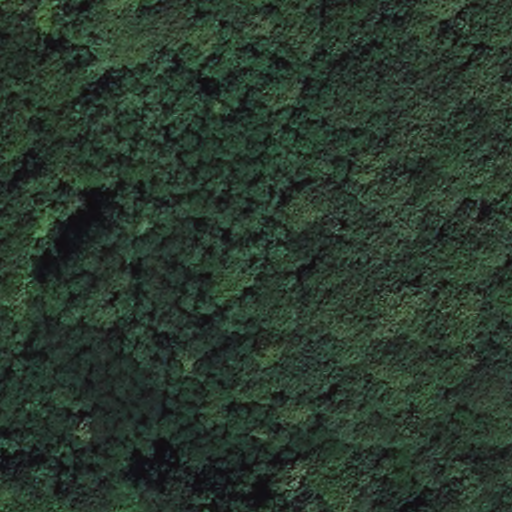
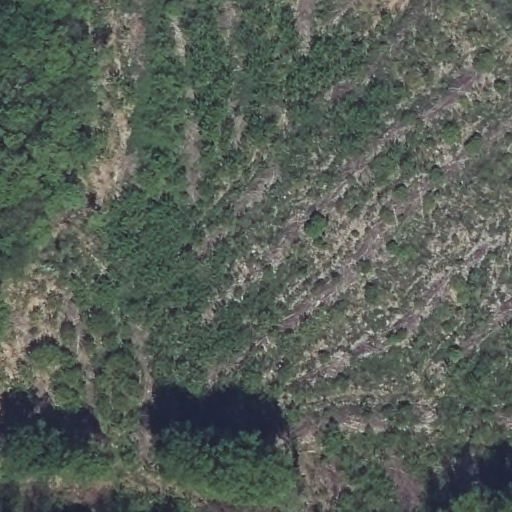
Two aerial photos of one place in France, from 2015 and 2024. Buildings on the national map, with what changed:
[]

